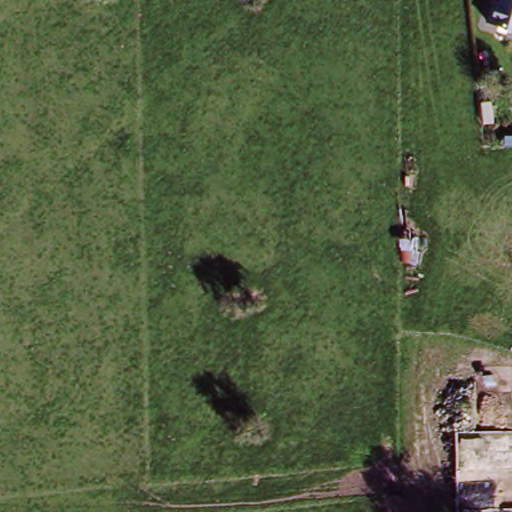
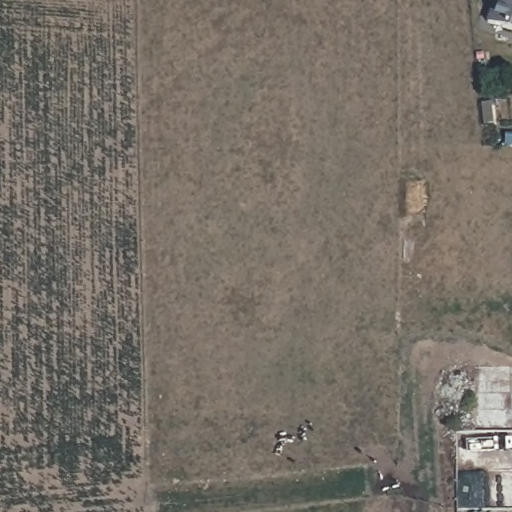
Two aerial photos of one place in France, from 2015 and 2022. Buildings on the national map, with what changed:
unchanged [(486,26),(493,0),(512,0),(512,33),(486,26)]
unchanged [(496,148),(497,138),(512,138),(512,148),(496,148)]

